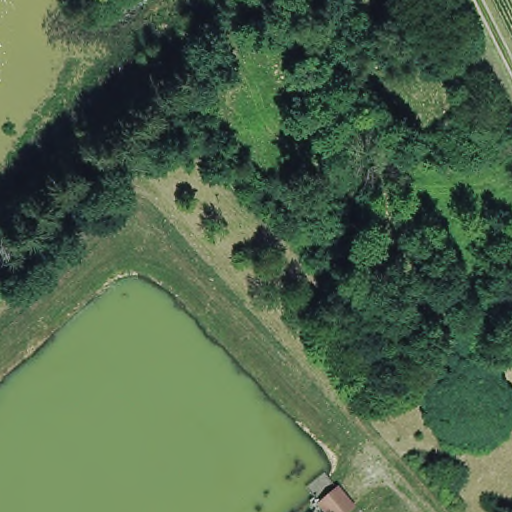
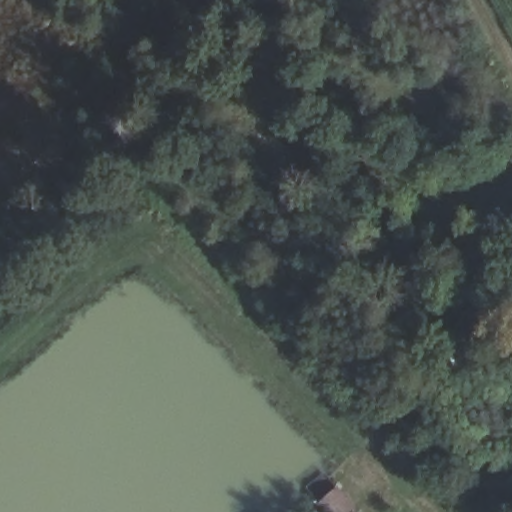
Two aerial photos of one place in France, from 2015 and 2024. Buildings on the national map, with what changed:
unchanged [(353,512),(327,512),(319,504),(341,485),(359,506),(353,512)]

